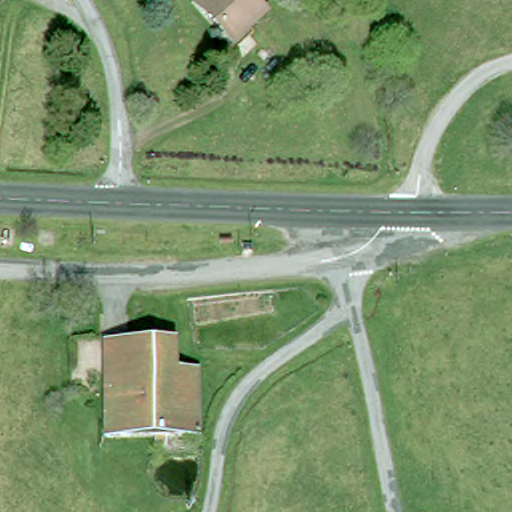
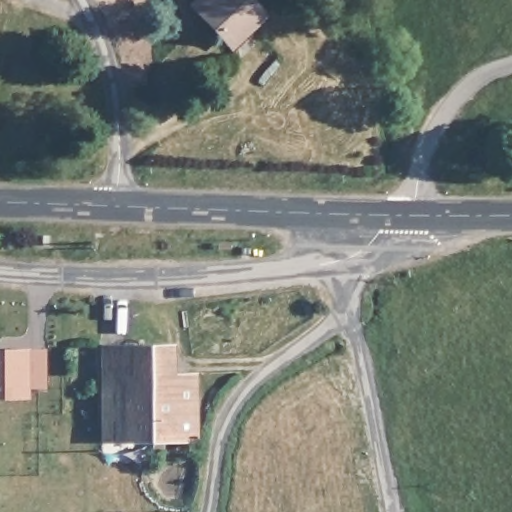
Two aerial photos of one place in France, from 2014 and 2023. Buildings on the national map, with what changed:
unchanged [(198,8),(192,1),(193,0),(251,0),(265,14),(235,45),(198,8)]
new [(45,348),(45,387),(29,387),(29,398),(0,398),(0,348),(29,349),(45,348)]
unchanged [(167,443),(167,454),(155,454),(155,443),(105,444),(103,349),(166,348),(166,374),(194,373),(195,442),(167,443)]

